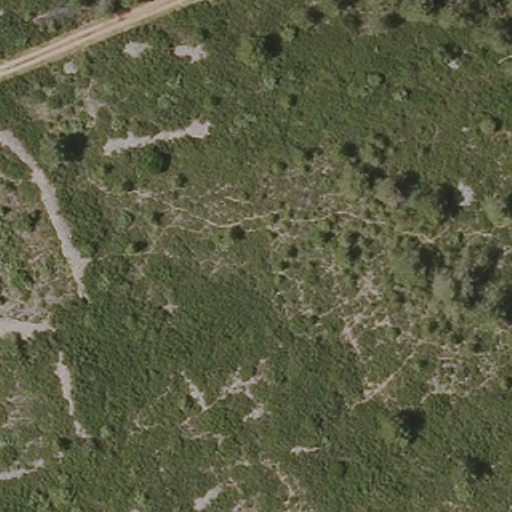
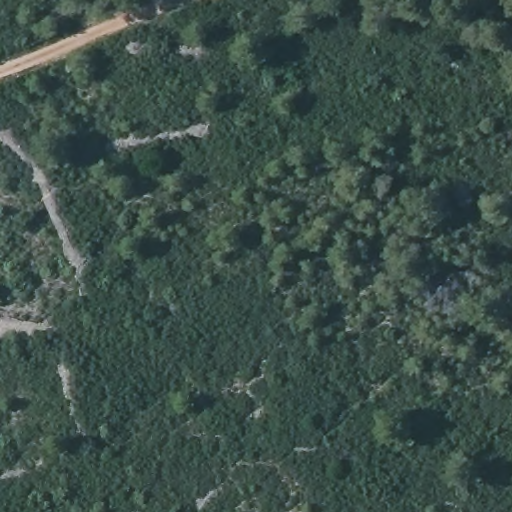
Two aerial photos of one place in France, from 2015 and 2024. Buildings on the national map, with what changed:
[]

